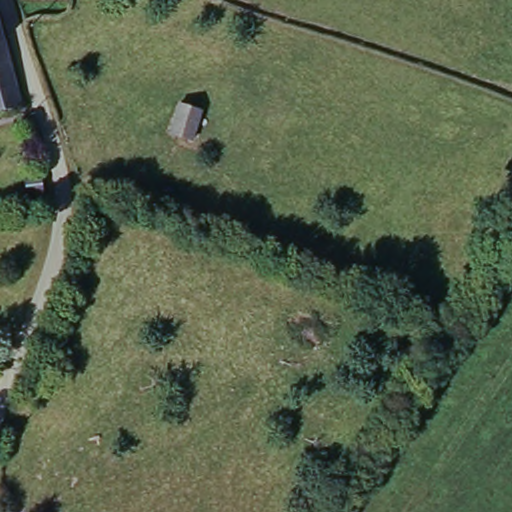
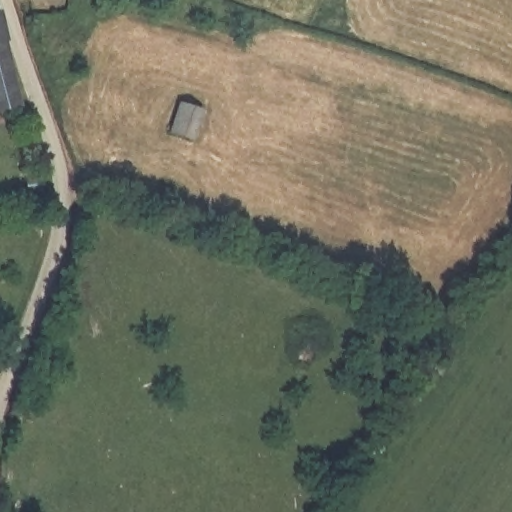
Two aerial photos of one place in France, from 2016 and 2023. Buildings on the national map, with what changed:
unchanged [(56,0),(69,0),(69,1),(56,0)]
unchanged [(0,119),(0,36),(25,111),(0,119)]
unchanged [(169,134),(178,104),(202,110),(194,140),(169,134)]

